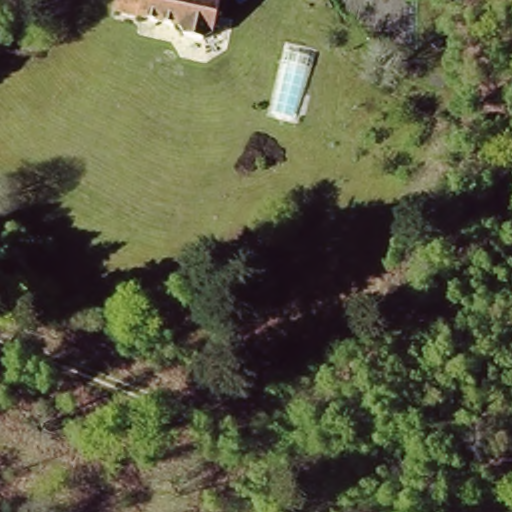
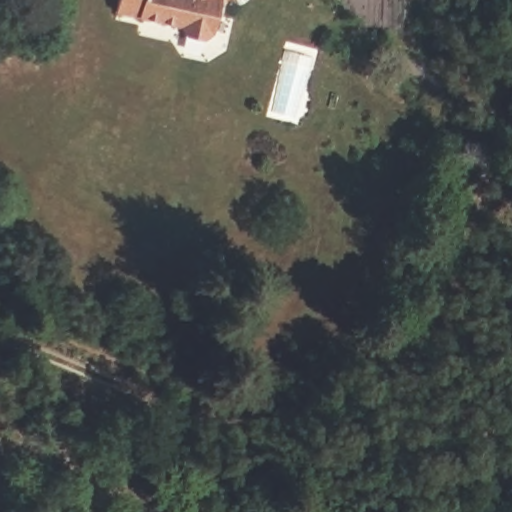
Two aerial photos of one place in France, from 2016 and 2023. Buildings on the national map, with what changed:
unchanged [(212,36),(206,40),(186,40),(182,36),(178,31),(176,27),(116,21),(118,0),(218,0),(216,31),(212,36)]

